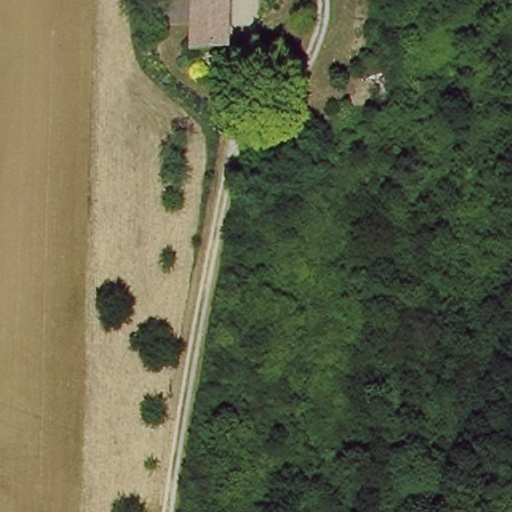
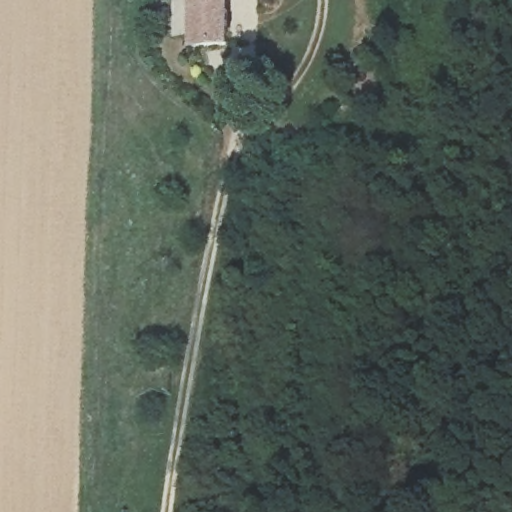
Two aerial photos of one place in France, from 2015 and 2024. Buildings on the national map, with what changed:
unchanged [(197,47),(200,0),(231,0),(229,54),(197,47)]

